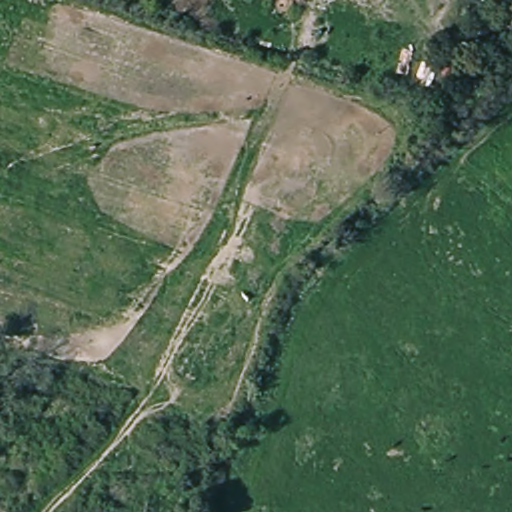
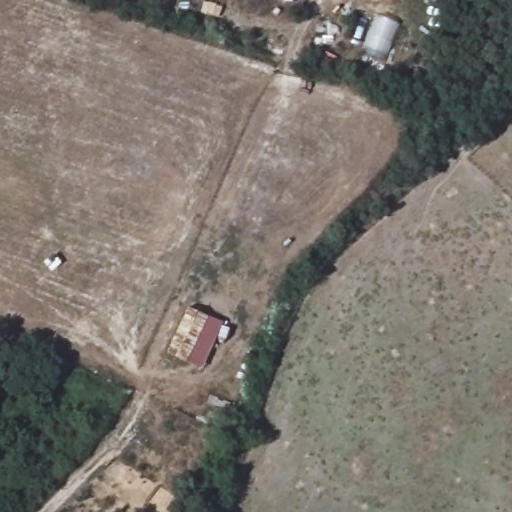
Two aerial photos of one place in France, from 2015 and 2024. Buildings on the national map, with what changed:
new [(224,324),(202,370),(170,356),(192,309),(210,318),(224,324)]

